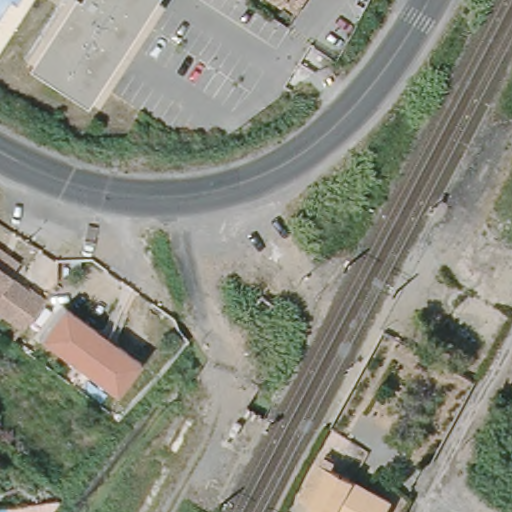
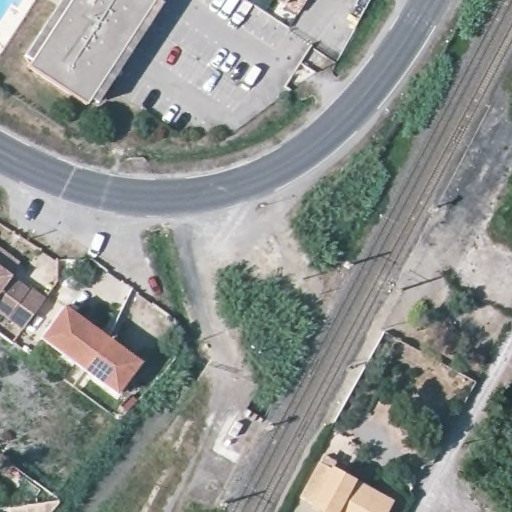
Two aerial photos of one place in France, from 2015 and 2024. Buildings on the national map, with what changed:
unchanged [(157,0),(93,98),(27,48),(57,0),(157,0)]
unchanged [(288,0),(303,0),(298,9),(288,0)]
unchanged [(12,280),(46,300),(22,335),(0,318),(0,252),(20,266),(12,280)]
unchanged [(252,308),(261,295),(276,305),(267,318),(252,308)]
unchanged [(142,366),(118,398),(40,345),(63,312),(142,366)]
unchanged [(383,512),(323,512),(298,500),(316,464),(389,501),(383,512)]
unchanged [(10,507),(26,504),(27,512),(10,512),(10,507)]

